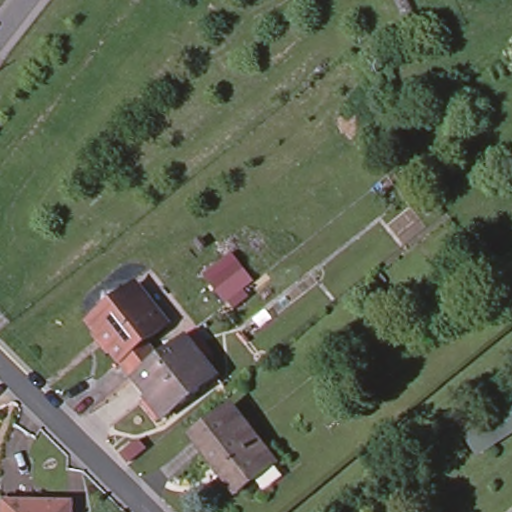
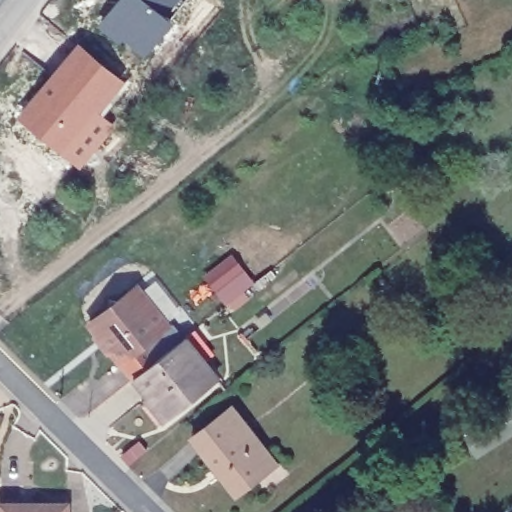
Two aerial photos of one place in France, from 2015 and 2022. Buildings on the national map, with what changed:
new [(123,35),(120,38),(102,23),(122,0),(186,0),(145,52),(123,35)]
new [(112,75),(87,105),(95,111),(62,150),(21,116),(79,48),(112,75)]
unchanged [(132,377),(119,362),(87,322),(105,308),(107,298),(117,300),(134,287),(165,326),(144,342),(156,357),(182,336),(215,376),(161,418),(155,423),(139,403),(145,398),(147,397),(132,377)]
unchanged [(512,404),(512,433),(476,456),(460,428),(507,397),(512,404)]
unchanged [(262,473),(235,494),(190,437),(229,407),(269,458),(274,464),(262,473)]
unchanged [(66,512),(0,512),(0,502),(17,502),(66,502),(66,512)]

